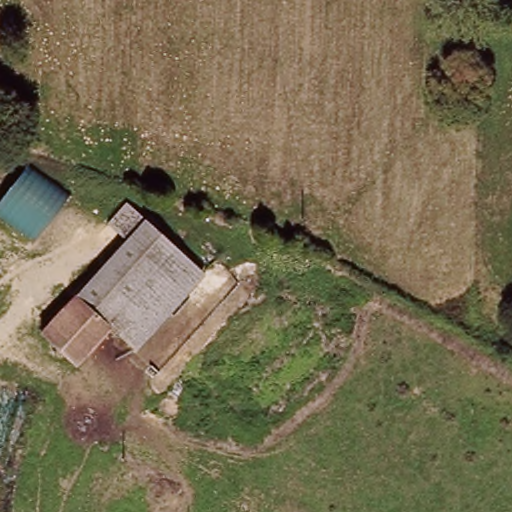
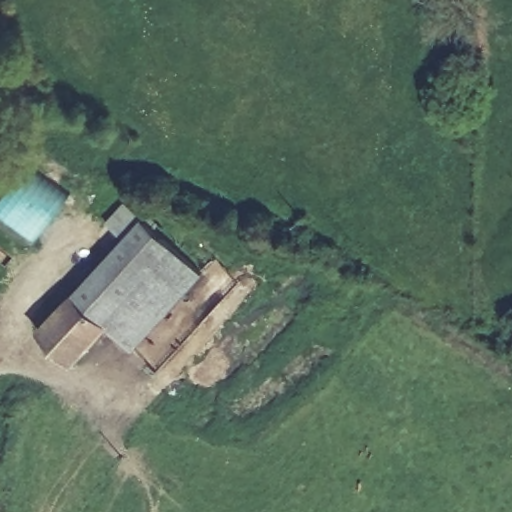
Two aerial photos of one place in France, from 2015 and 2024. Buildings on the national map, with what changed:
unchanged [(70,192),(34,241),(0,215),(0,198),(28,162),(70,192)]
unchanged [(73,289),(123,237),(105,218),(125,199),(142,216),(148,210),(177,237),(173,242),(102,317),(73,289)]
unchanged [(173,242),(201,268),(127,343),(103,320),(102,317),(173,242)]
unchanged [(69,356),(38,327),(73,289),(102,317),(103,320),(69,356)]

